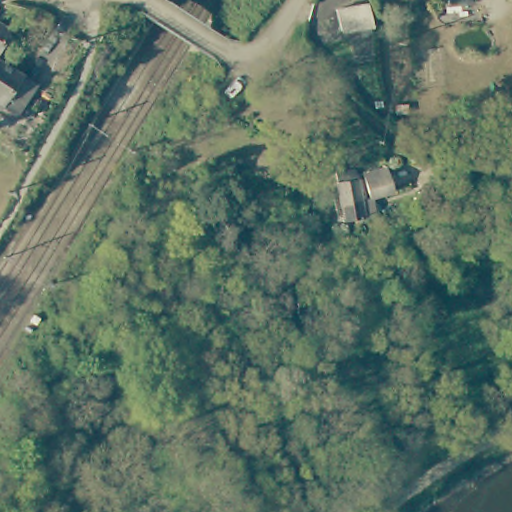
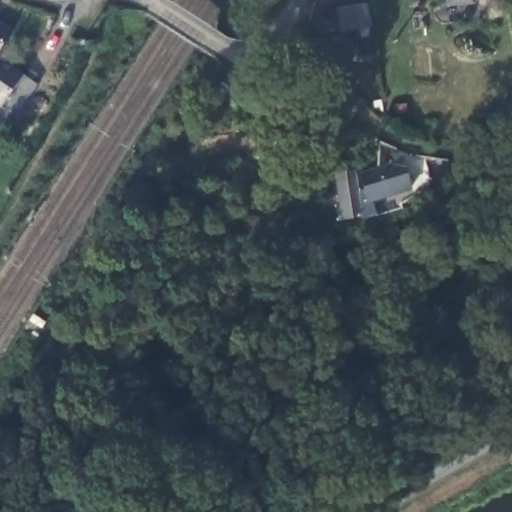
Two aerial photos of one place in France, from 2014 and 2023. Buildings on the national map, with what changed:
unchanged [(455,0),(469,0),(455,1),(455,0)]
unchanged [(359,5),(358,24),(328,23),(327,4),(359,5)]
unchanged [(16,31),(0,59),(0,21),(16,31)]
unchanged [(37,83),(18,113),(0,101),(0,59),(37,83)]
unchanged [(49,102),(44,112),(34,107),(38,98),(49,102)]
unchanged [(390,165),(398,190),(377,198),(368,172),(382,168),(390,165)]
unchanged [(367,204),(343,204),(343,186),(366,185),(367,204)]

